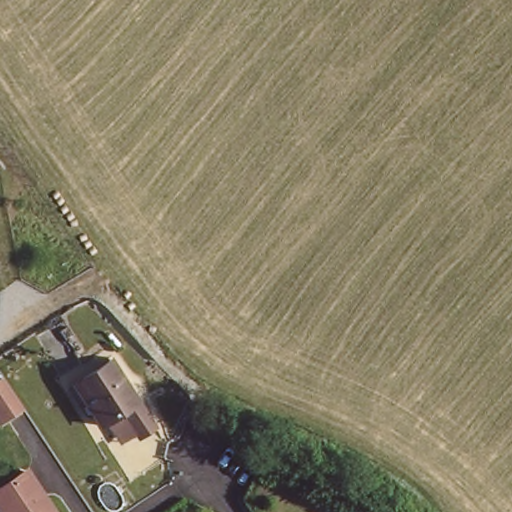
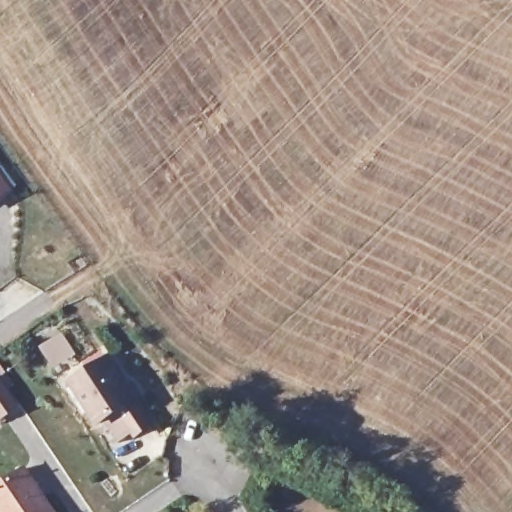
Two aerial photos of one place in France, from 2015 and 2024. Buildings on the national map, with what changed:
unchanged [(68,386),(116,354),(156,417),(118,445),(68,386)]
unchanged [(0,377),(1,376),(20,406),(0,418),(0,377)]
unchanged [(0,485),(27,467),(55,512),(8,512),(0,500),(0,485)]

